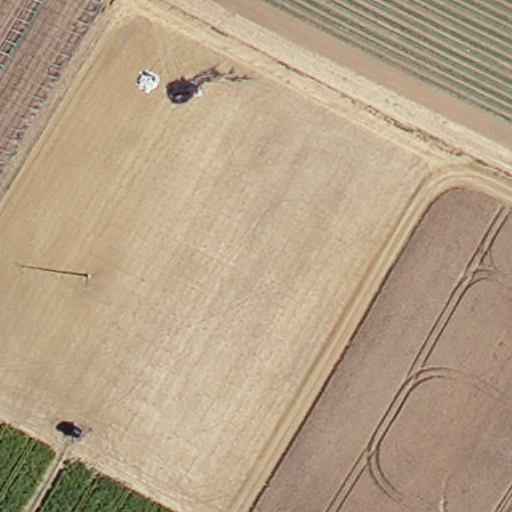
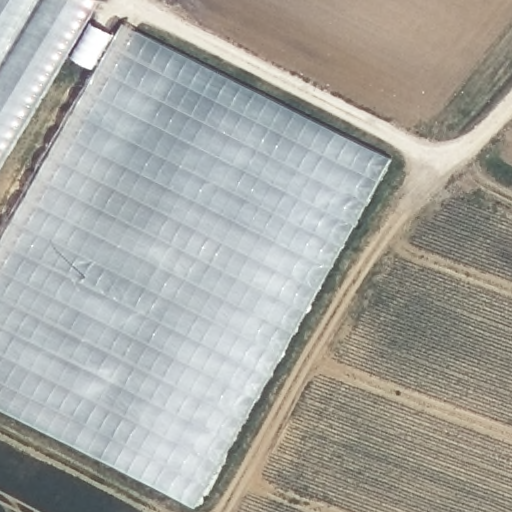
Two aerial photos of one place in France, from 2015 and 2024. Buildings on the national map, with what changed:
unchanged [(100,0),(0,164),(0,0),(100,0)]
new [(197,507),(0,408),(0,248),(125,24),(393,158),(197,507)]

